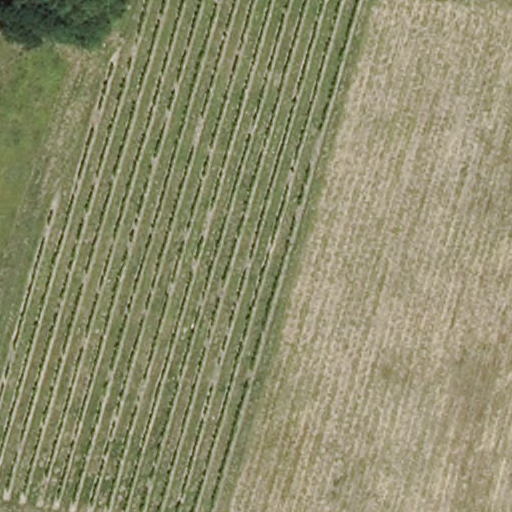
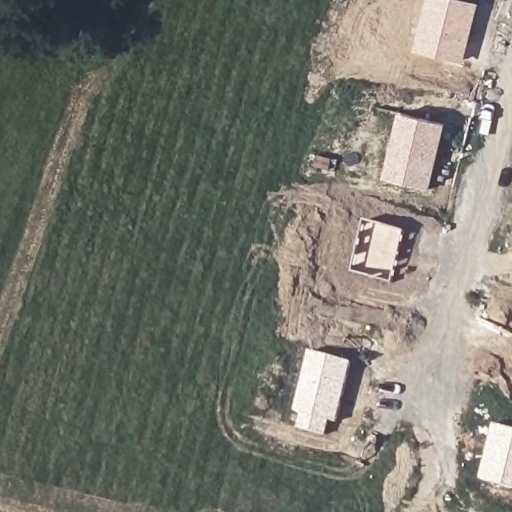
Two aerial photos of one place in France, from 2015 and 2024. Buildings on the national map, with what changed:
new [(465,63),(416,50),(429,0),(471,0),(482,3),(465,63)]
new [(429,190),(383,178),(400,113),(446,125),(429,190)]
new [(391,283),(350,272),(365,220),(406,231),(391,283)]
new [(337,423),(329,421),(325,435),(298,428),(302,412),(295,411),(311,351),(354,362),(337,423)]
new [(494,423),(512,428),(512,486),(479,477),(494,423)]

